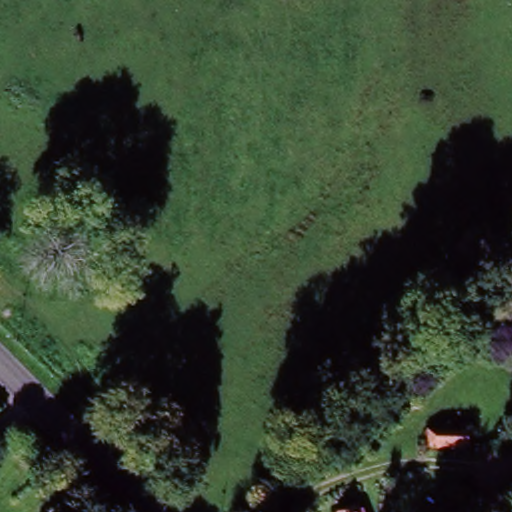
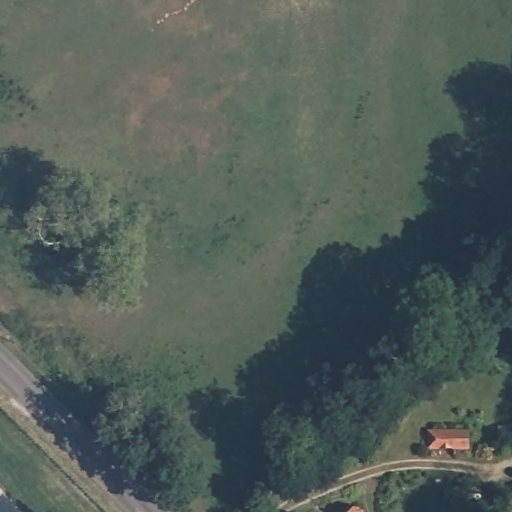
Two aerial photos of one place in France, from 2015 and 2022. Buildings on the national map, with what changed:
unchanged [(468,428),(468,452),(422,451),(423,440),(425,428),(468,428)]
unchanged [(512,484),(508,488),(500,478),(512,466),(512,484)]
unchanged [(345,512),(361,508),(363,512),(345,512)]

